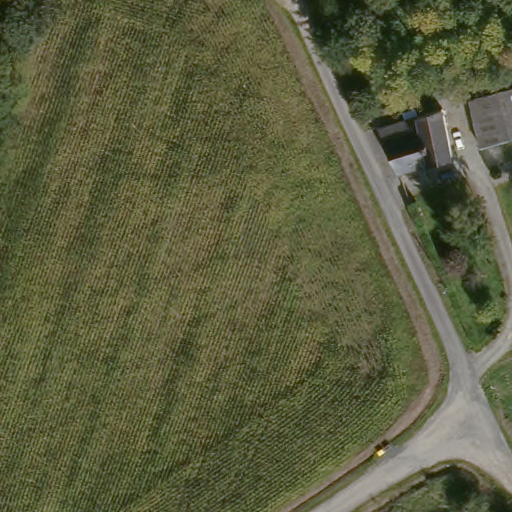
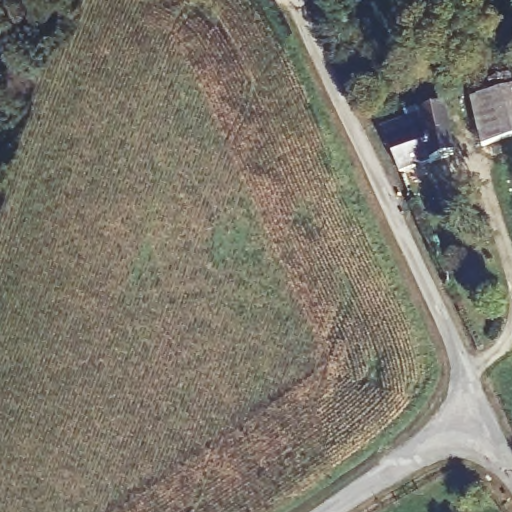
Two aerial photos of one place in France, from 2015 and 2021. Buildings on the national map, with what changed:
unchanged [(512,86),(512,137),(482,147),(467,100),(512,86)]
unchanged [(390,126),(390,125),(437,111),(444,109),(458,155),(405,173),(390,126)]

